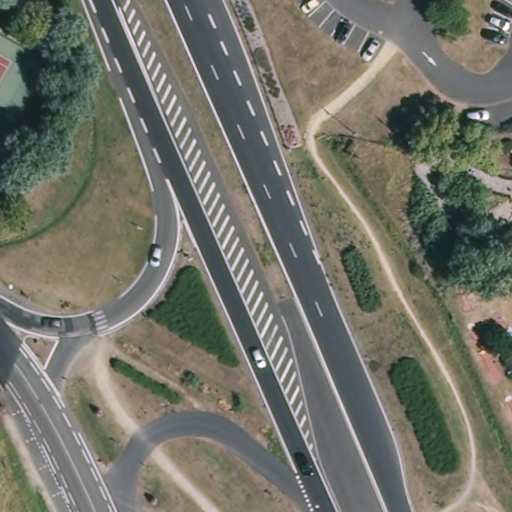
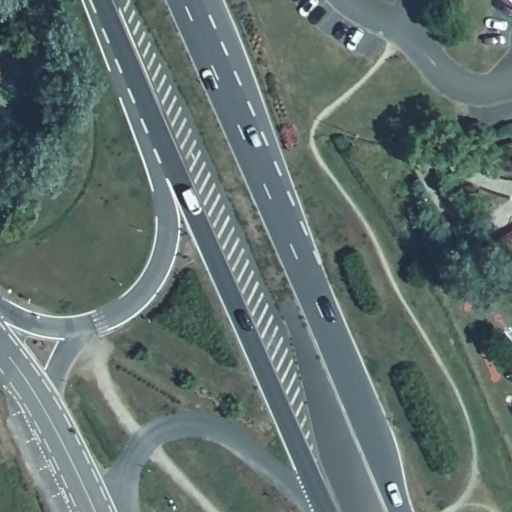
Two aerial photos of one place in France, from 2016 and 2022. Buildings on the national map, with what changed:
[]

